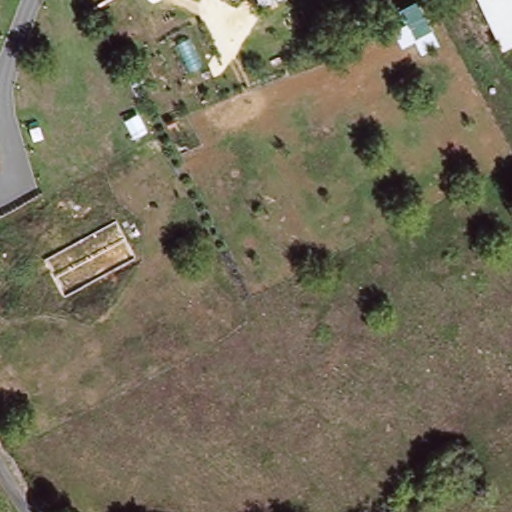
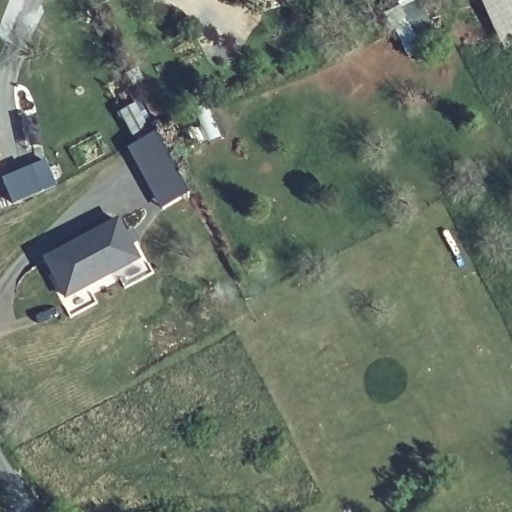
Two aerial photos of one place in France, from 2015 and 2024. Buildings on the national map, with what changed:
unchanged [(221,2),(220,0),(226,0),(221,2)]
unchanged [(484,0),(512,0),(512,5),(493,16),(484,0)]
unchanged [(509,45),(493,16),(512,5),(512,43),(509,45)]
new [(164,208),(159,200),(131,150),(160,134),(187,184),(192,192),(164,208)]
new [(118,224),(139,261),(68,301),(46,265),(118,224)]

